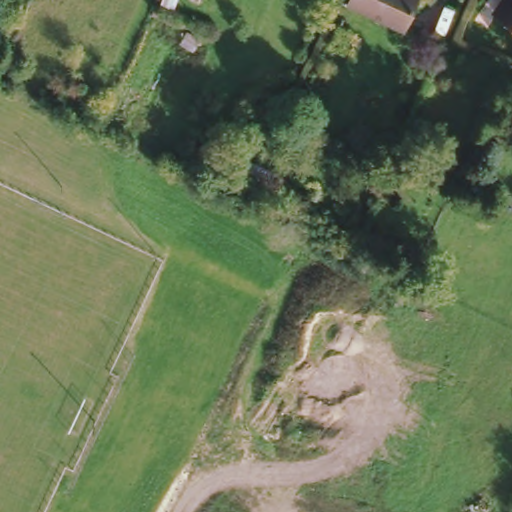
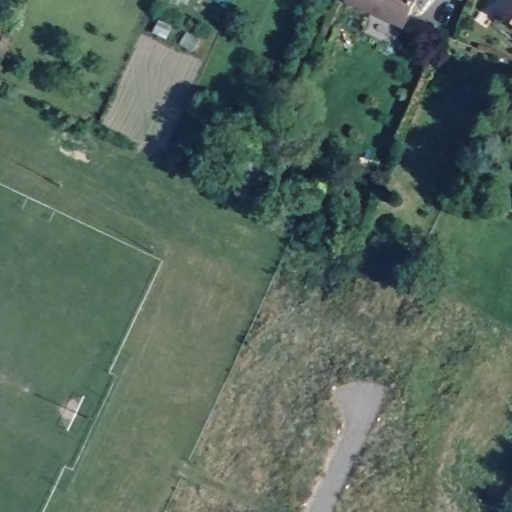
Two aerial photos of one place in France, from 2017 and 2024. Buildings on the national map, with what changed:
unchanged [(416,0),(403,29),(347,2),(347,0),(416,0)]
unchanged [(495,11),(503,0),(512,0),(512,23),(495,11)]
unchanged [(247,156),(273,169),(264,188),(239,177),(247,156)]
unchanged [(216,184),(207,179),(211,170),(220,174),(216,184)]

